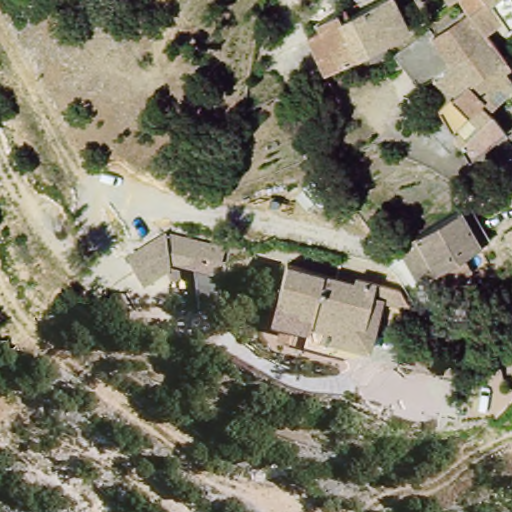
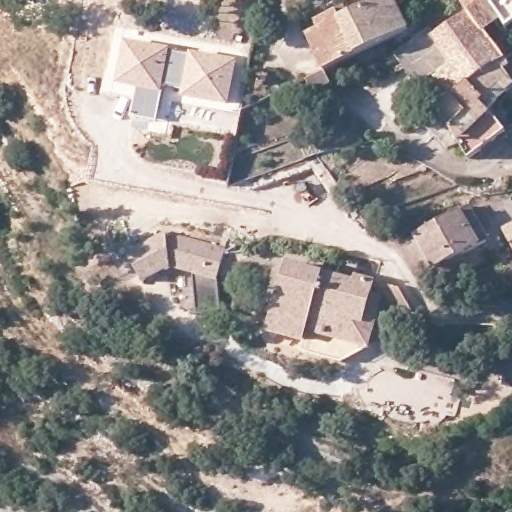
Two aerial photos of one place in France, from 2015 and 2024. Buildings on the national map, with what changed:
unchanged [(308,34),(320,29),(317,22),(337,12),(342,18),(382,0),(395,0),(411,31),(327,71),(308,34)]
unchanged [(450,1),(450,0),(452,0),(450,1)]
unchanged [(483,32),(468,11),(461,0),(487,0),(502,20),(485,31),(483,32)]
unchanged [(508,29),(502,20),(487,0),(512,0),(512,27),(508,29)]
unchanged [(423,125),(442,112),(438,106),(449,97),(435,80),(432,77),(419,87),(395,55),(428,30),(433,36),(468,11),(483,32),(485,31),(506,59),(512,67),(512,78),(510,80),(512,84),(512,88),(489,112),(506,133),(470,160),(462,146),(447,151),(423,125)]
new [(127,45),(232,62),(226,105),(162,94),(157,122),(133,119),(137,90),(120,88),(127,45)]
unchanged [(490,246),(432,281),(408,240),(469,206),(490,246)]
unchanged [(215,281),(168,269),(145,284),(125,256),(163,232),(222,246),(215,281)]
unchanged [(305,338),(290,334),(288,333),(286,333),(285,332),(282,332),(281,331),(280,331),(270,328),(287,261),(355,278),(357,273),(377,279),(400,285),(410,303),(383,296),(376,322),(370,344),(369,344),(343,360),(302,349),(305,338)]
unchanged [(455,387),(450,409),(440,408),(445,385),(455,387)]

